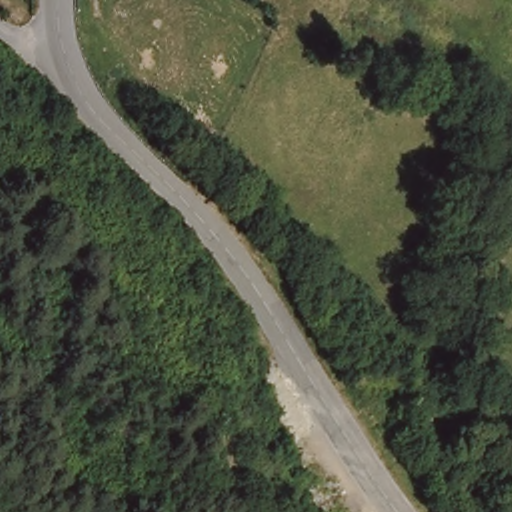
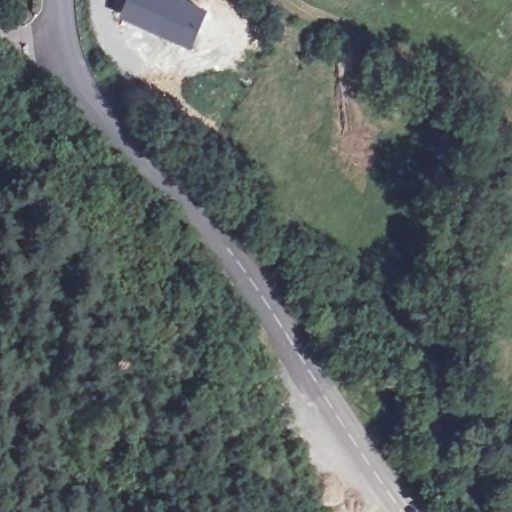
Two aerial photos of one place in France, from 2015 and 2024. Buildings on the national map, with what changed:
new [(126,0),(191,0),(209,8),(190,48),(119,16),(126,0)]

